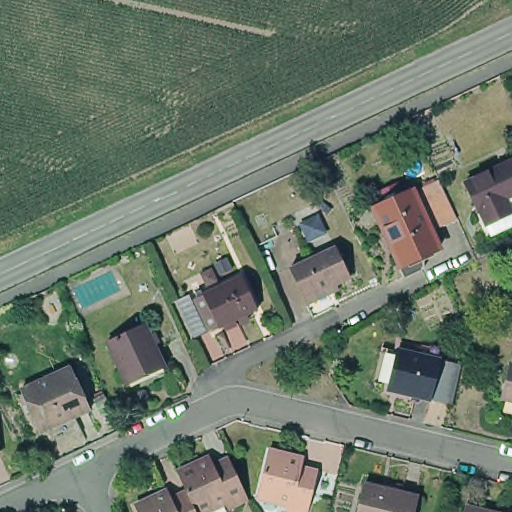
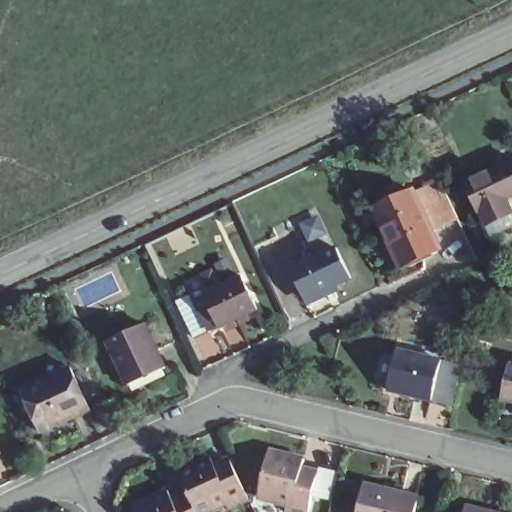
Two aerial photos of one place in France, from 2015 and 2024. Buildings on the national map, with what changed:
unchanged [(507,195),(512,207),(485,220),(480,206),(477,208),(465,179),(512,156),(512,192),(507,195)]
unchanged [(447,214),(422,226),(405,189),(430,178),(447,214)]
unchanged [(397,273),(392,261),(365,205),(404,186),(405,189),(422,226),(430,243),(415,250),(415,265),(397,273)]
unchanged [(305,297),(291,269),(335,248),(347,278),(305,297)]
unchanged [(252,305),(215,323),(199,290),(237,271),(252,305)]
unchanged [(159,371),(122,389),(102,346),(140,330),(159,371)]
unchanged [(448,378),(442,401),(422,396),(380,386),(389,346),(412,351),(415,339),(434,344),(431,356),(452,361),(448,378)]
unchanged [(84,400),(35,423),(16,380),(65,358),(84,400)]
unchanged [(502,397),(511,365),(512,365),(512,399),(502,397)]
unchanged [(245,492),(227,500),(224,493),(195,507),(187,490),(174,462),(207,447),(212,454),(224,448),(245,492)]
unchanged [(304,512),(281,512),(282,505),(254,497),(265,451),(300,459),(299,467),(312,471),(304,512)]
unchanged [(410,512),(353,512),(360,483),(413,496),(410,512)]
unchanged [(195,507),(197,512),(141,512),(137,503),(169,488),(172,496),(187,490),(195,507)]
unchanged [(464,505),(493,512),(462,512),(464,505)]

